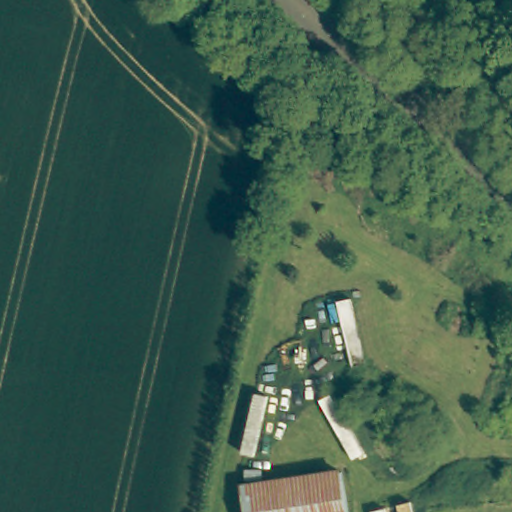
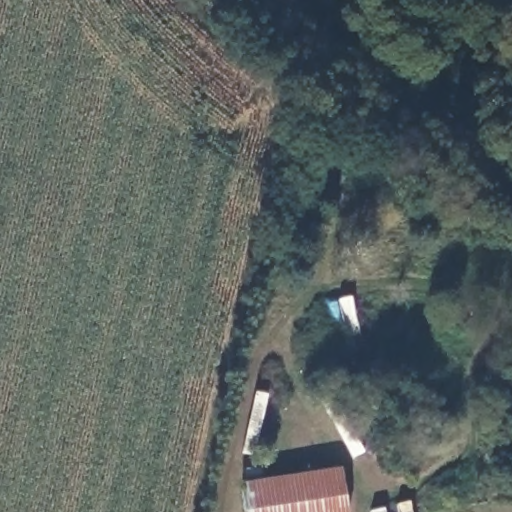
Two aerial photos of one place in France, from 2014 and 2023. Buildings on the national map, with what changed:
unchanged [(351,512),(251,512),(247,483),(345,469),(351,512)]

